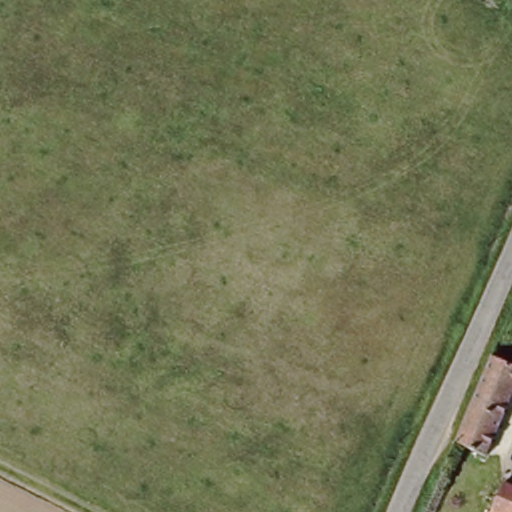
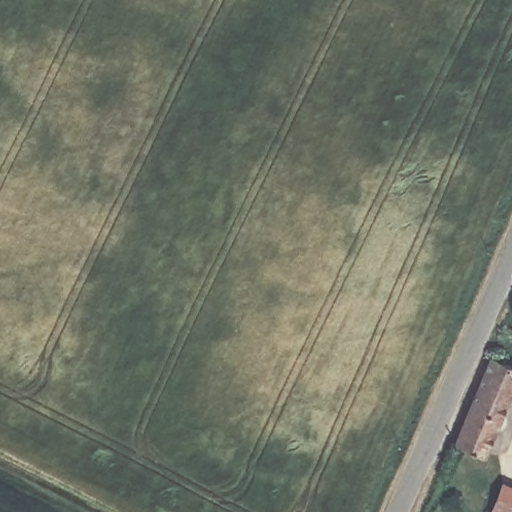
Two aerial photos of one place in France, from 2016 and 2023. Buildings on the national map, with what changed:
unchanged [(512,363),(512,400),(487,457),(457,442),(494,353),(512,363)]
unchanged [(482,487),(485,480),(512,492),(512,512),(481,512),(472,508),(482,487)]

